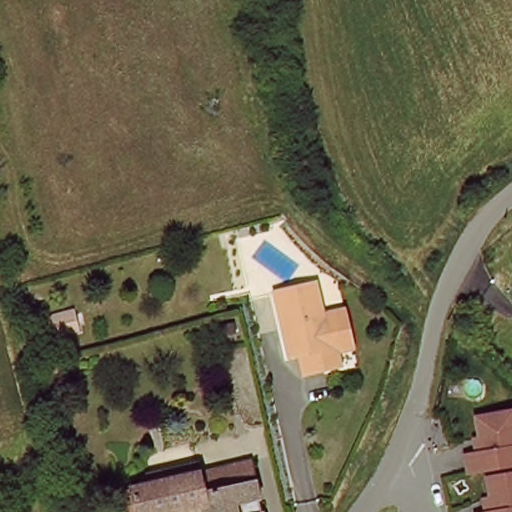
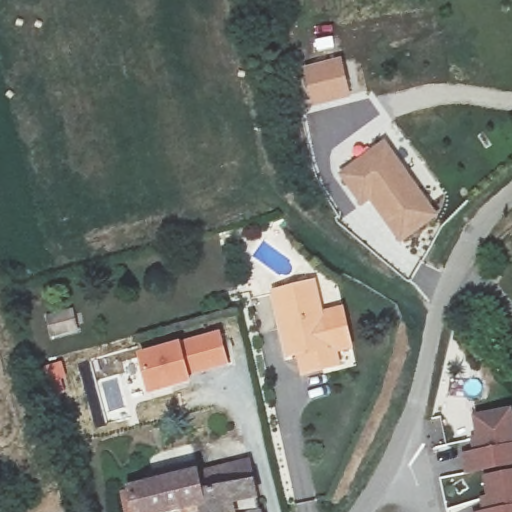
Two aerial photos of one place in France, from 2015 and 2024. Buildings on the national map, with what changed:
new [(306,71),(340,62),(348,93),(314,101),(306,71)]
new [(387,140),(438,211),(404,235),(381,204),(387,199),(379,189),(365,199),(344,170),(387,140)]
unchanged [(326,340),(335,338),(341,362),(299,373),(292,353),(284,355),(270,291),(311,281),(326,340)]
new [(221,330),(230,367),(192,377),(194,383),(148,395),(140,353),(221,330)]
new [(62,360),(69,392),(53,397),(42,367),(62,360)]
unchanged [(489,501),(495,500),(491,475),(474,477),(472,459),(482,458),(480,442),(486,441),(483,423),(512,418),(512,471),(510,472),(511,480),(512,479),(512,512),(491,512),(489,501)]
unchanged [(259,512),(202,512),(199,494),(136,512),(127,476),(195,463),(229,451),(235,474),(248,471),(259,512)]

